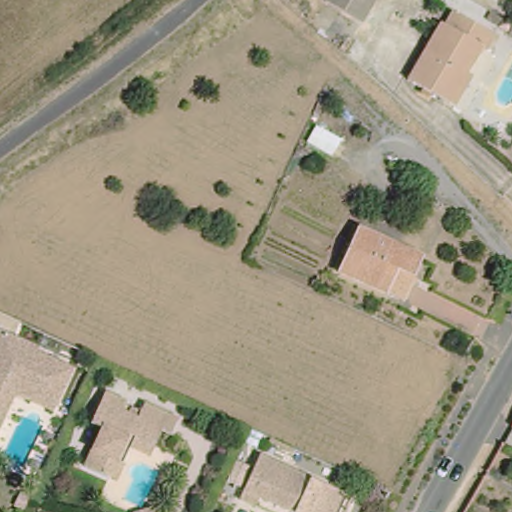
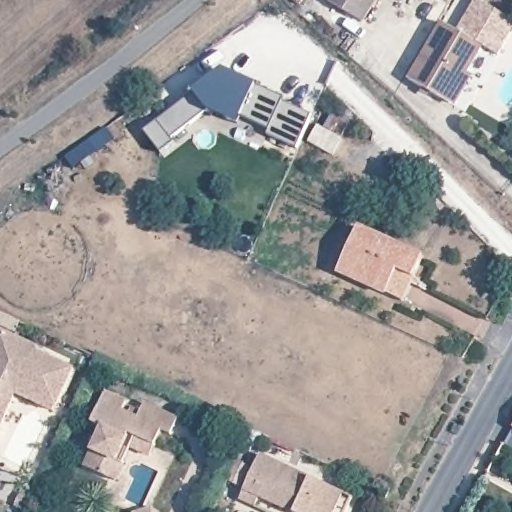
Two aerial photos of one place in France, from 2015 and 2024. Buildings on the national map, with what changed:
unchanged [(360,15),(337,0),(370,0),(360,15)]
unchanged [(423,52),(443,18),(447,20),(456,7),(498,33),(490,46),(486,44),(454,97),(411,71),(423,52)]
new [(176,128),(179,132),(164,142),(148,120),(219,68),(228,61),(242,68),(289,91),(287,94),(316,108),(300,142),(271,127),(273,122),(245,109),(242,116),(212,102),(219,96),(176,128)]
unchanged [(339,267),(360,225),(422,256),(412,278),(402,298),(386,290),(339,267)]
unchanged [(72,364),(53,407),(17,389),(0,426),(0,332),(72,364)]
unchanged [(105,425),(93,420),(105,390),(125,400),(122,408),(139,418),(149,402),(180,417),(172,432),(167,429),(153,422),(149,431),(137,425),(112,474),(87,461),(105,425)]
unchanged [(341,494),(333,512),(285,512),(261,501),(257,509),(240,500),(261,457),(341,494)]

